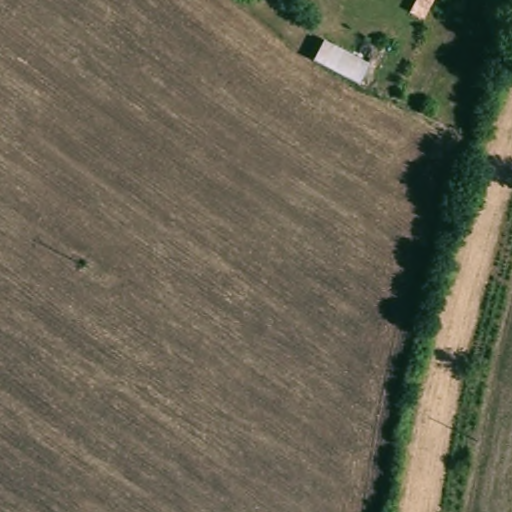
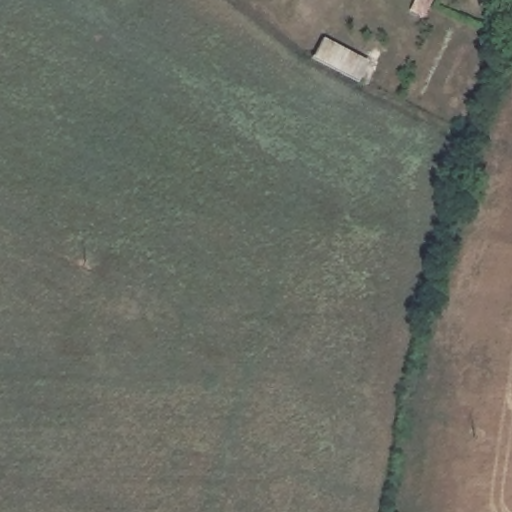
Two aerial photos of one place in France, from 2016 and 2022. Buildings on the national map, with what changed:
unchanged [(416,0),(431,0),(422,16),(417,15),(410,12),(416,0)]

